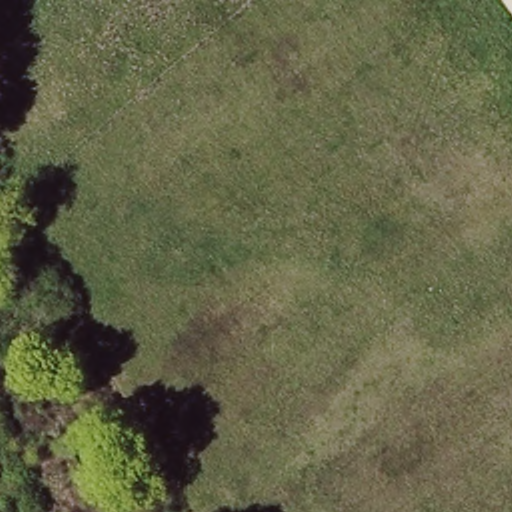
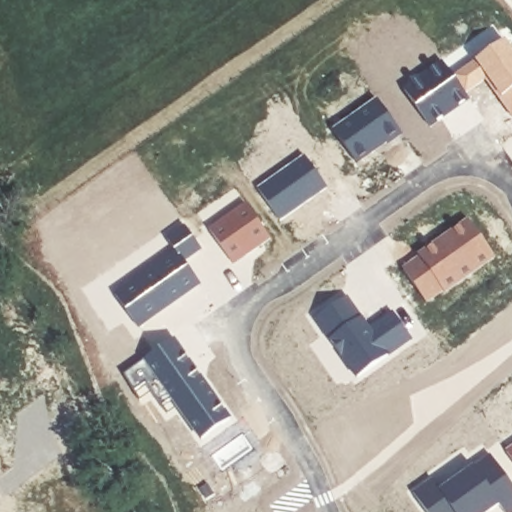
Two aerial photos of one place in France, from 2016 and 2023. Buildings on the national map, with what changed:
new [(512,51),(512,116),(500,99),(502,96),(488,76),(465,94),(453,77),(505,40),(512,51)]
new [(443,62),(453,77),(465,94),(470,99),(430,127),(405,90),(443,62)]
new [(377,99),(402,134),(388,144),(387,142),(357,164),(333,130),(377,99)]
new [(305,156),(327,188),(280,220),(257,189),(305,156)]
new [(246,204),(270,239),(234,264),(209,229),(246,204)]
new [(420,257),(418,255),(468,220),(495,260),(443,291),(442,290),(425,301),(403,269),(420,257)]
new [(176,251),(168,239),(185,225),(201,249),(184,260),(200,283),(138,327),(115,295),(176,251)]
new [(346,296),(356,310),(352,313),(357,320),(361,317),(370,329),(393,312),(412,338),(357,378),(315,318),(346,296)]
new [(173,339),(230,420),(202,439),(173,398),(162,406),(145,382),(134,391),(123,375),(173,339)]
new [(512,459),(507,452),(512,448),(512,459)]

